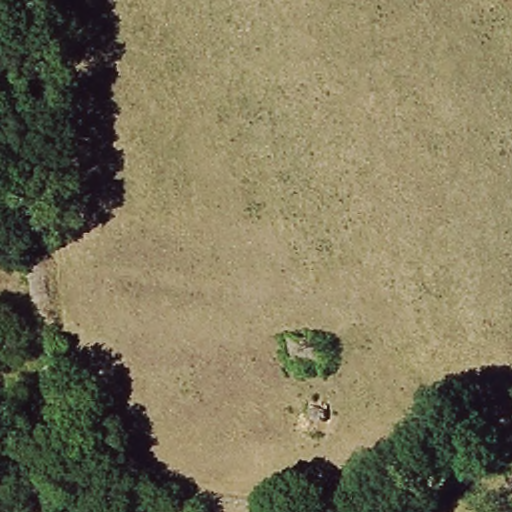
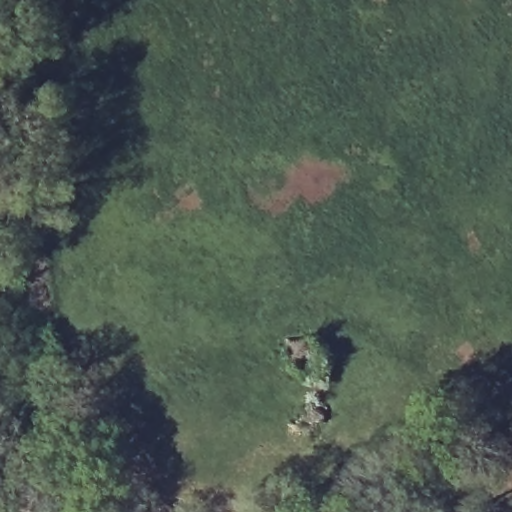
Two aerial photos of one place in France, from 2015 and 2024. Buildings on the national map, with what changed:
unchanged [(312,422),(314,406),(337,409),(336,424),(312,422)]

